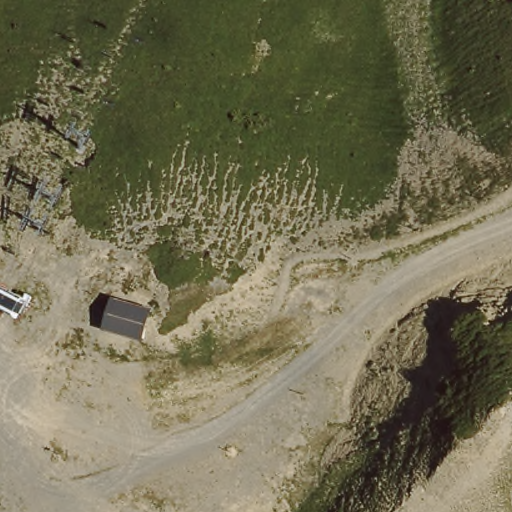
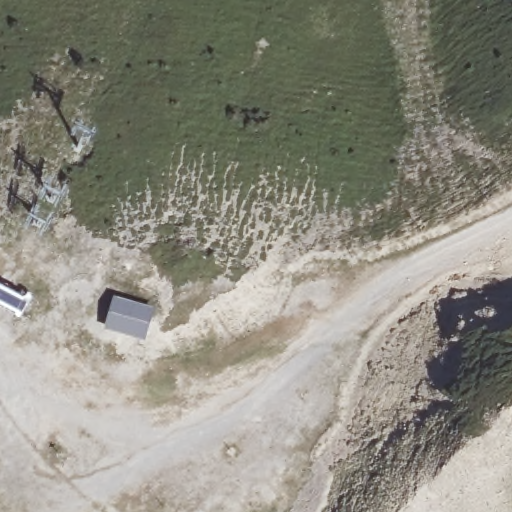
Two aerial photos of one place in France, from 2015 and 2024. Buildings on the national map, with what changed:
unchanged [(114,297),(156,308),(147,342),(104,330),(114,297)]

